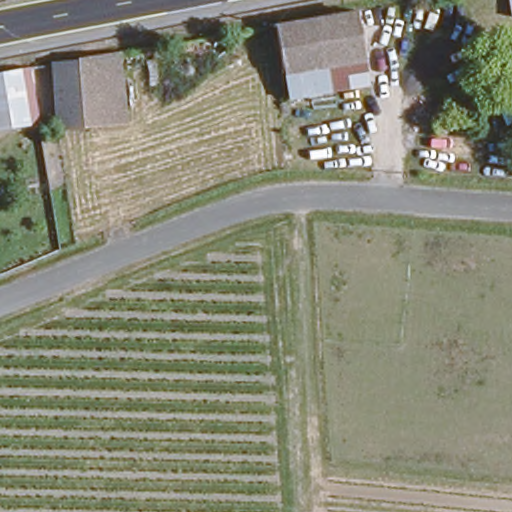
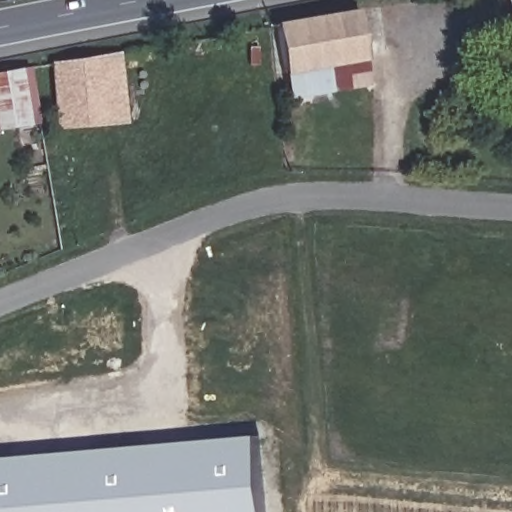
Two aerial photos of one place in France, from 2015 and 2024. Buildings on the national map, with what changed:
unchanged [(439,10),(438,0),(460,0),(461,6),(439,10)]
unchanged [(281,67),(274,24),(287,22),(354,10),(360,54),(281,67)]
unchanged [(54,129),(44,65),(118,53),(128,115),(54,129)]
unchanged [(363,79),(285,92),(281,67),(360,54),(363,79)]
unchanged [(0,71),(28,66),(36,121),(0,127),(0,71)]
unchanged [(444,126),(444,115),(479,116),(479,128),(444,126)]
new [(0,512),(0,458),(260,436),(268,512),(0,512)]

